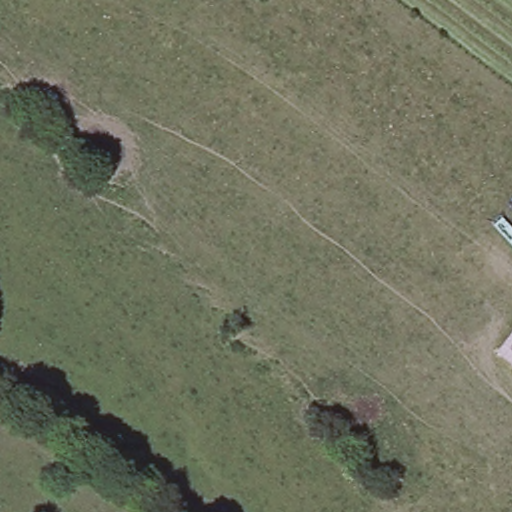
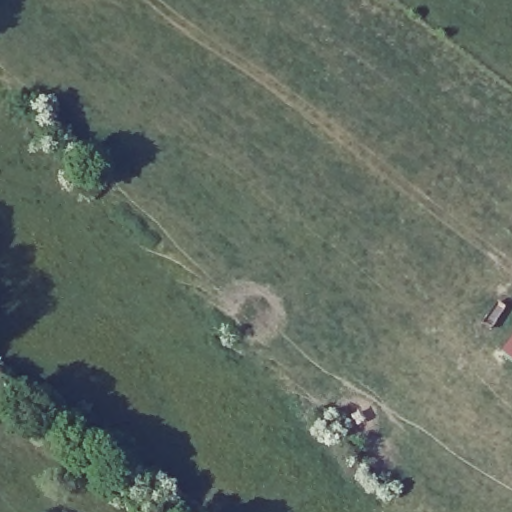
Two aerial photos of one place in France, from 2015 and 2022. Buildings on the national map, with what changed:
unchanged [(512,342),(512,360),(504,352),(512,342)]

